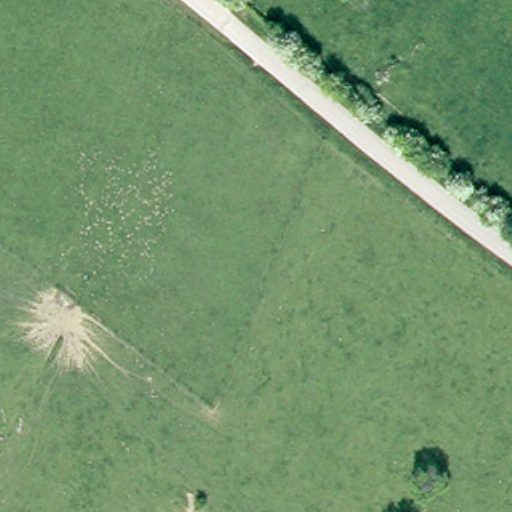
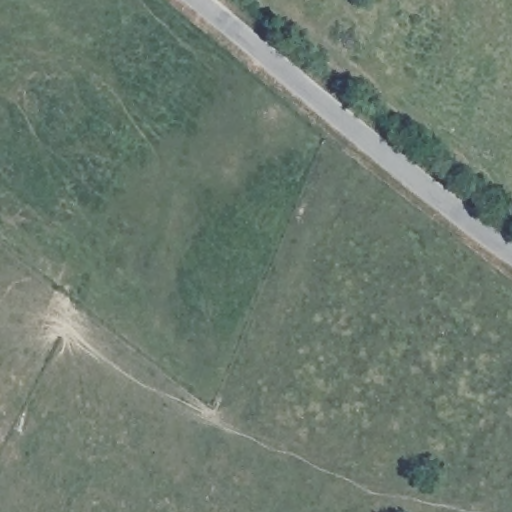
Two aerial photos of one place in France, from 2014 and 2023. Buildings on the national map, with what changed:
[]

